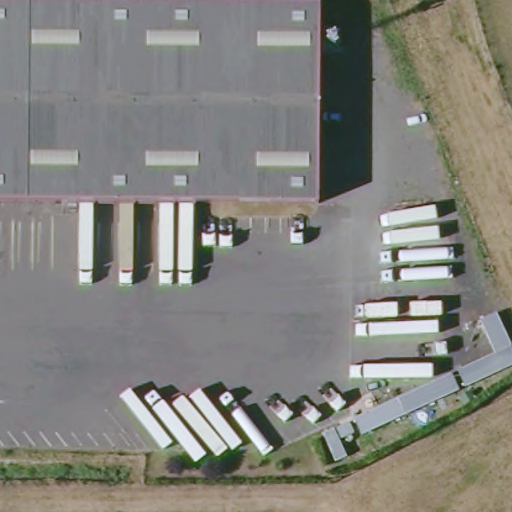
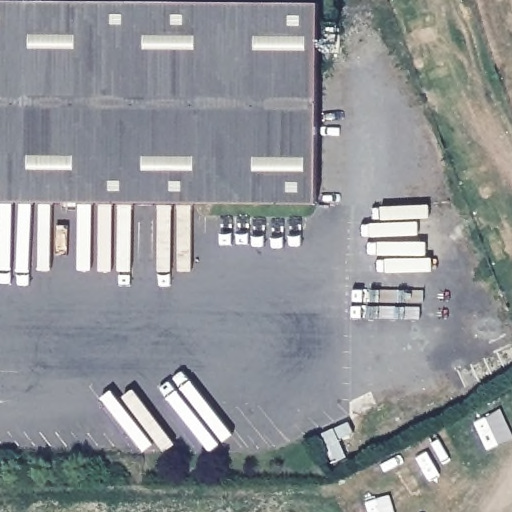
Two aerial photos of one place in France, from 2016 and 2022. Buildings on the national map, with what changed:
unchanged [(319,205),(0,201),(0,1),(320,4),(319,205)]

